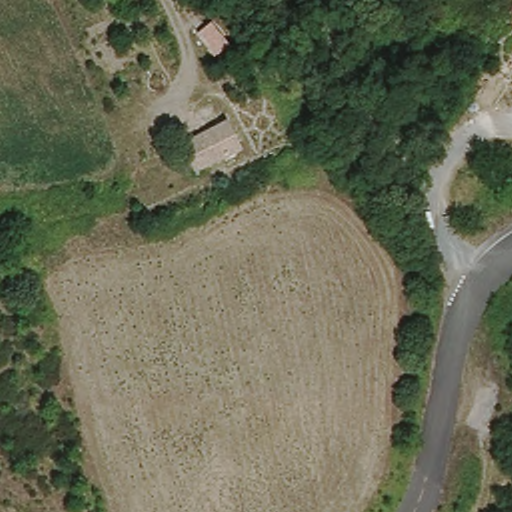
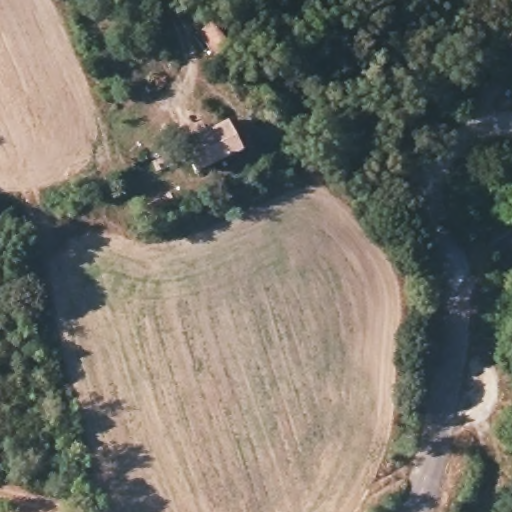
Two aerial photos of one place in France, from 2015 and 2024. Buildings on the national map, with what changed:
unchanged [(190,165),(177,137),(227,117),(238,145),(205,159),(190,165)]

